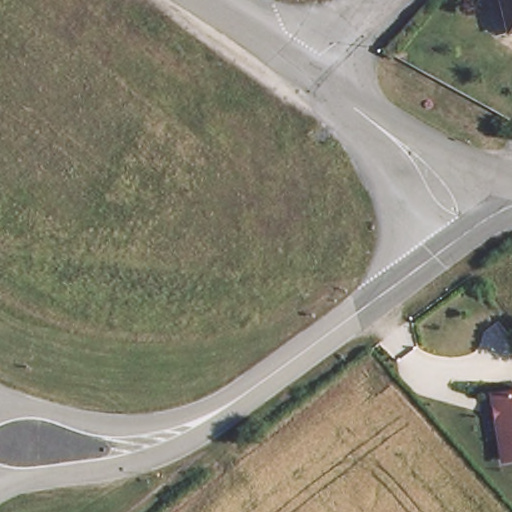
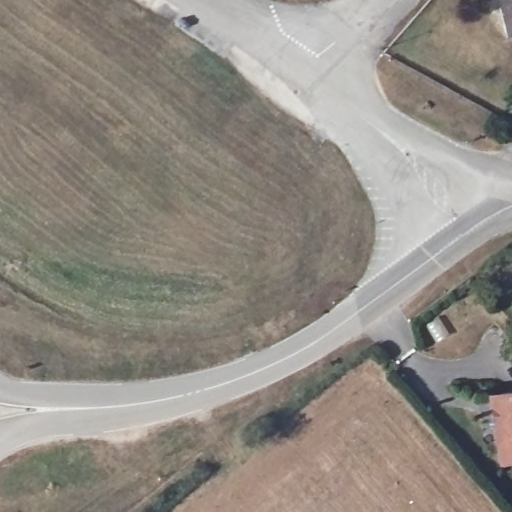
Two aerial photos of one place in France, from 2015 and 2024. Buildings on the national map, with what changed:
unchanged [(500,0),(512,0),(512,23),(506,24),(500,0)]
unchanged [(495,395),(512,392),(512,461),(505,462),(495,395)]

